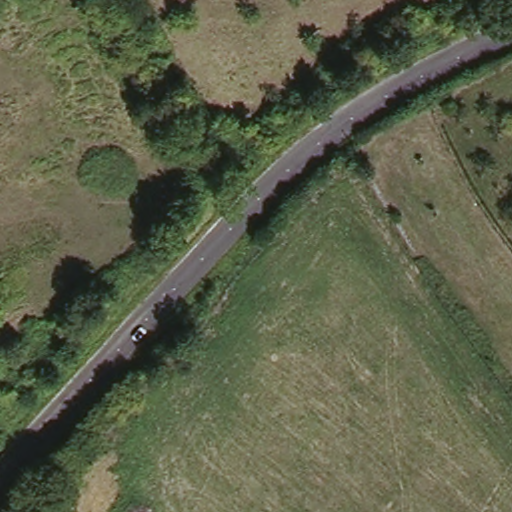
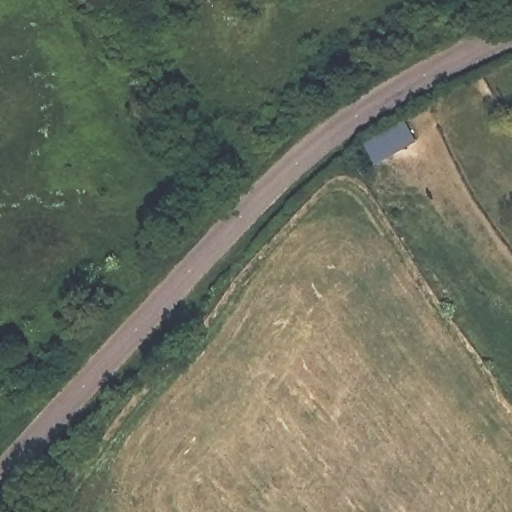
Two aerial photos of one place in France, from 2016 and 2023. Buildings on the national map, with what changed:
new [(405,118),(417,137),(372,164),(361,144),(405,118)]

